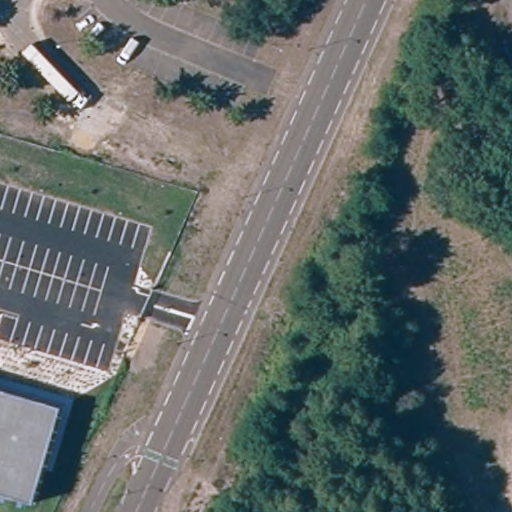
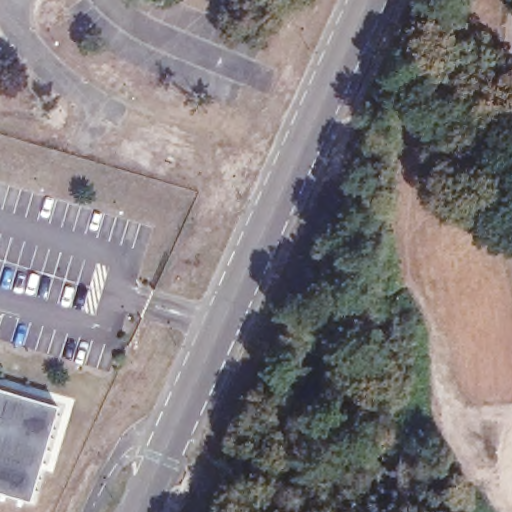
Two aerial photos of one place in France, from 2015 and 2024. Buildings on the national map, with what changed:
unchanged [(29,505),(0,496),(0,391),(58,408),(29,505)]

